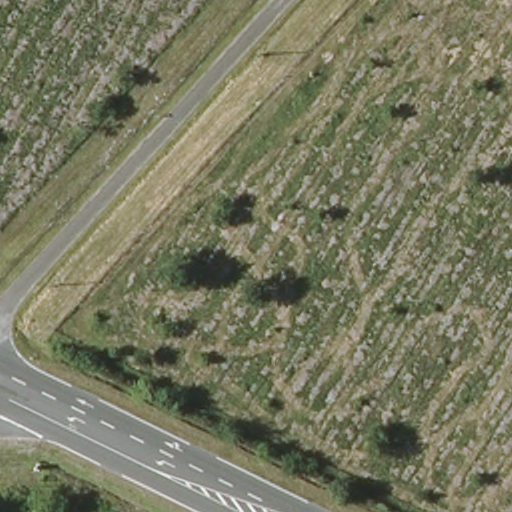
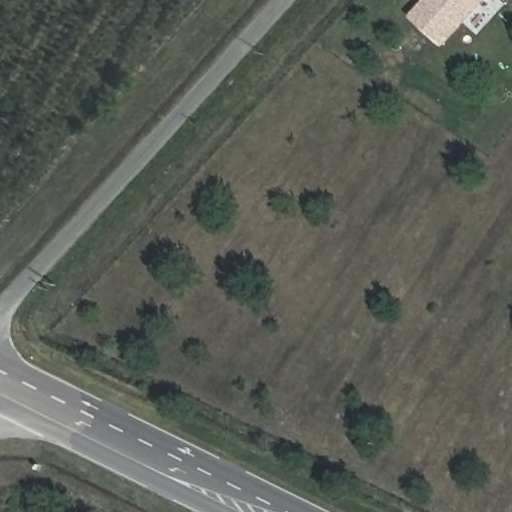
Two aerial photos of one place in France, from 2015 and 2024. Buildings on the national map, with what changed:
new [(429,0),(479,0),(439,44),(414,20),(431,1),(429,0)]

